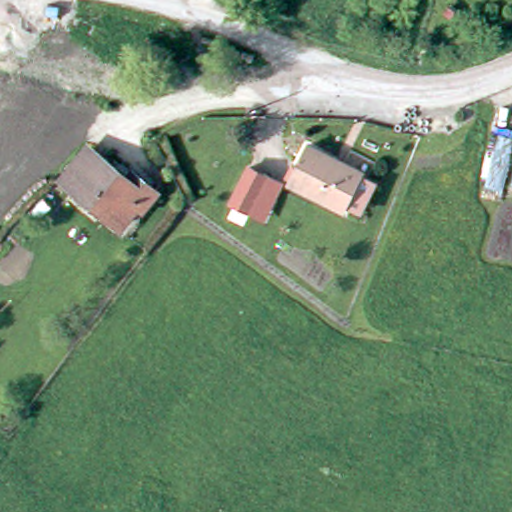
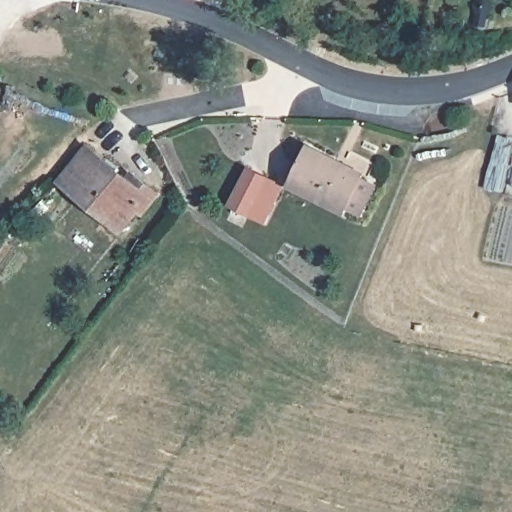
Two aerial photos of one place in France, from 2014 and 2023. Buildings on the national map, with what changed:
unchanged [(489,163),(497,162),(500,138),(512,139),(512,163),(506,194),(486,193),(489,163)]
unchanged [(367,212),(353,206),(351,212),(294,184),(312,146),(344,162),(343,163),(368,175),(367,177),(380,184),(367,212)]
unchanged [(157,196),(143,215),(135,208),(120,227),(64,182),(90,151),(130,182),(134,177),(157,196)]
unchanged [(249,214),(231,205),(250,169),(268,178),(249,214)]

